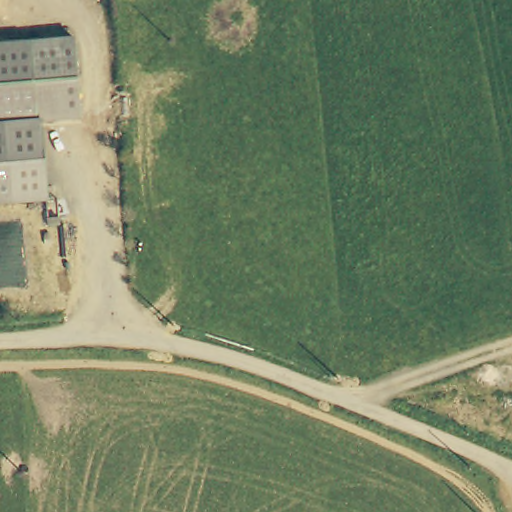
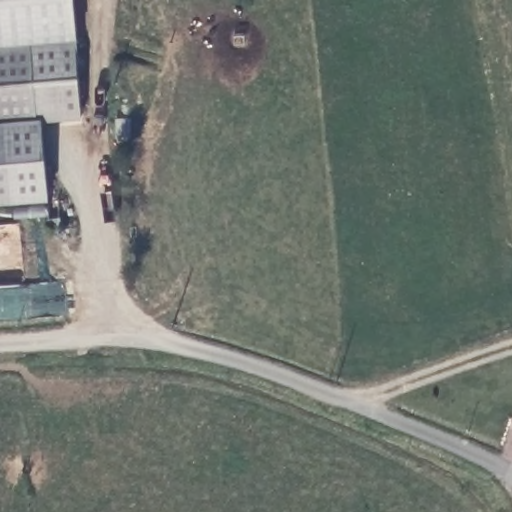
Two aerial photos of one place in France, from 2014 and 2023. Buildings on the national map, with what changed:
new [(0,48),(0,0),(73,0),(77,42),(0,48)]
unchanged [(82,120),(36,124),(7,126),(0,126),(0,48),(77,42),(82,120)]
unchanged [(41,202),(13,205),(7,126),(36,124),(41,202)]
unchanged [(13,205),(0,205),(0,126),(7,126),(13,205)]

